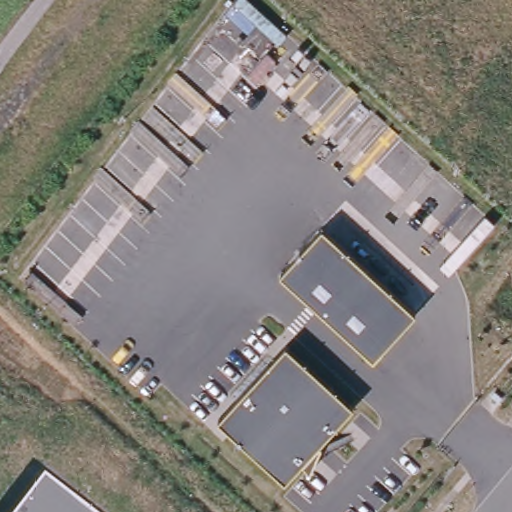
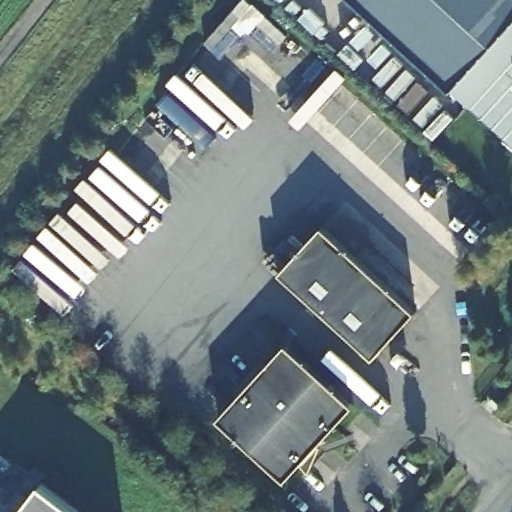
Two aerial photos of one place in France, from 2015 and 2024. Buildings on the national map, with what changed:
new [(451,89),(353,0),(512,0),(512,23),(451,89)]
new [(512,64),(512,145),(471,108),(512,64)]
unchanged [(411,312),(371,356),(279,270),(320,226),(411,312)]
unchanged [(286,478),(217,418),(283,346),(351,405),(286,478)]
unchanged [(78,512),(17,512),(40,483),(78,512)]

